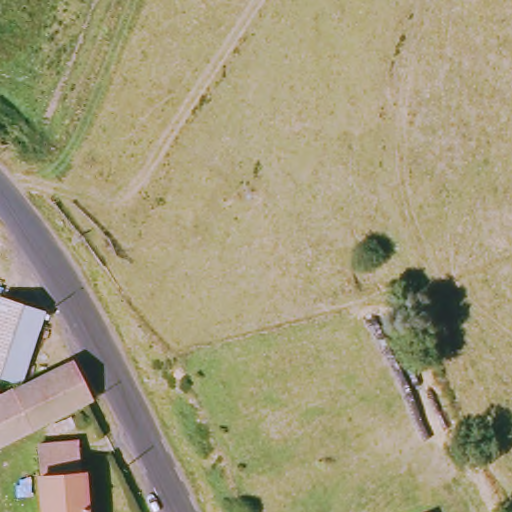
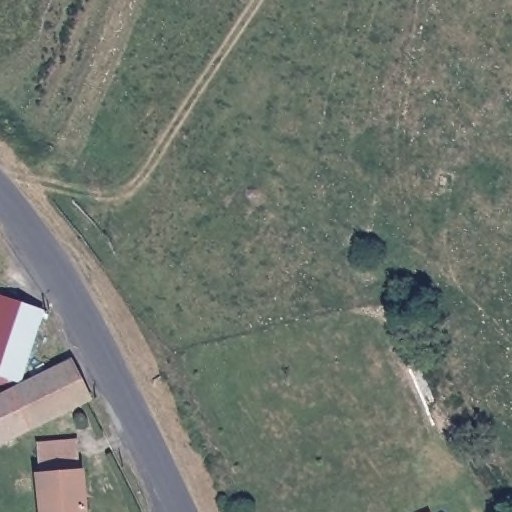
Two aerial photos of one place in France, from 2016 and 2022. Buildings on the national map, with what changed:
unchanged [(21,377),(0,371),(0,298),(42,309),(21,377)]
unchanged [(20,381),(65,360),(86,403),(0,443),(0,391),(20,381)]
unchanged [(36,454),(73,448),(79,477),(39,481),(36,454)]
unchanged [(79,477),(83,512),(40,512),(39,481),(79,477)]

